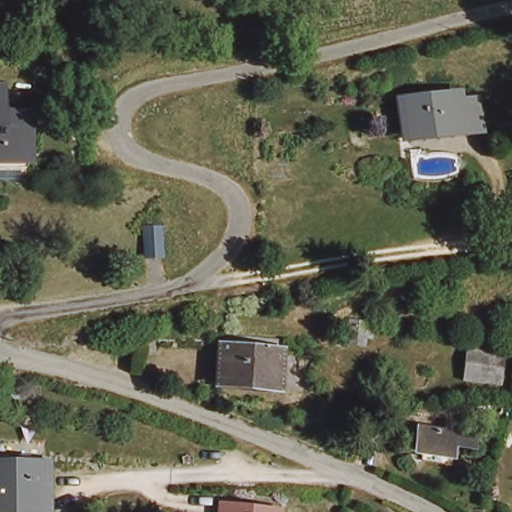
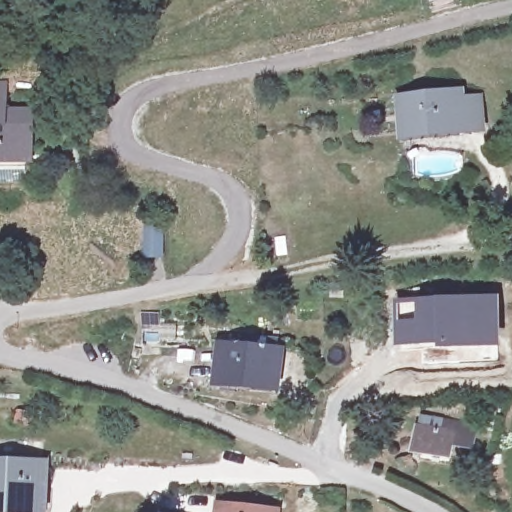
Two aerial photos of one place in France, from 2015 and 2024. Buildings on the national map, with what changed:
unchanged [(15,87),(14,109),(44,109),(44,124),(44,161),(0,162),(0,88),(15,87)]
unchanged [(483,131),(467,131),(411,131),(412,97),(455,97),(467,103),(484,104),(483,131)]
unchanged [(140,253),(140,223),(161,224),(161,235),(160,253),(140,253)]
new [(499,293),(502,348),(455,350),(396,348),(394,298),(499,293)]
unchanged [(219,379),(224,345),(278,351),(275,384),(219,379)]
unchanged [(472,392),(476,362),(496,364),(490,395),(472,392)]
unchanged [(408,427),(433,432),(435,424),(464,430),(459,452),(440,447),(437,458),(400,450),(408,427)]
unchanged [(0,507),(0,464),(44,465),(43,507),(0,507)]

